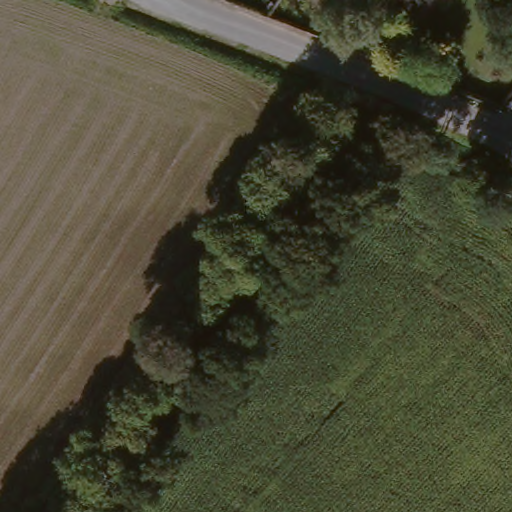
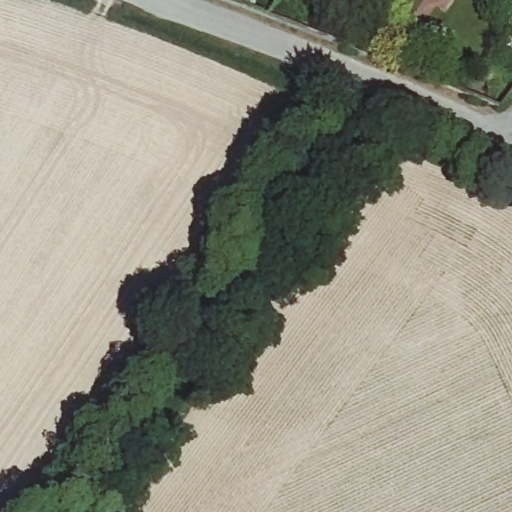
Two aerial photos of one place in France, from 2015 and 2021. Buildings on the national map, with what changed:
[]

